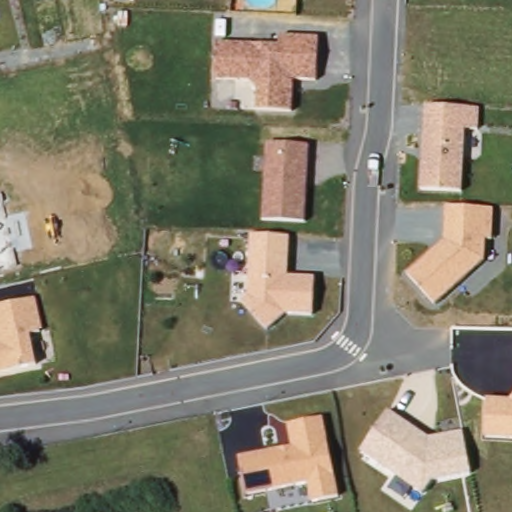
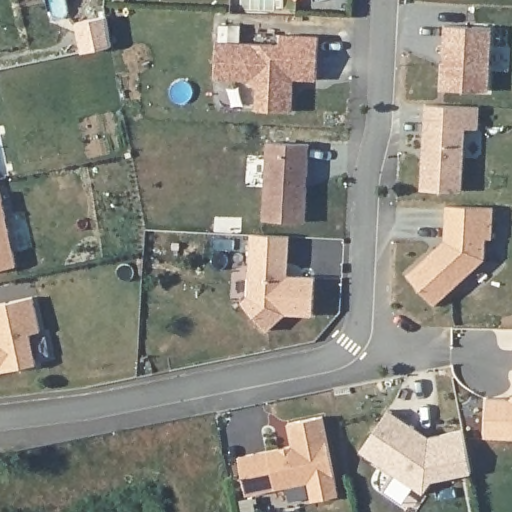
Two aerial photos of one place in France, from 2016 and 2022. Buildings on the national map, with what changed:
new [(445,26),(489,27),(487,92),(441,87),(445,26)]
unchanged [(212,79),(215,42),(277,45),(277,35),(317,37),(315,81),(292,80),(290,112),(253,111),(255,89),(246,81),(212,79)]
unchanged [(477,107),(476,128),(463,128),(461,190),(419,189),(423,105),(477,107)]
unchanged [(264,142),(307,144),(304,222),(260,220),(264,142)]
unchanged [(6,220),(24,214),(31,250),(14,253),(16,267),(0,270),(0,196),(1,196),(6,220)]
unchanged [(444,206),(490,208),(489,240),(484,241),(484,260),(434,305),(405,275),(441,242),(444,206)]
unchanged [(249,235),(288,237),(286,276),(314,277),(312,317),(283,315),(265,331),(238,301),(245,295),(249,235)]
unchanged [(39,330),(30,332),(35,365),(0,372),(0,304),(31,297),(39,330)]
unchanged [(487,437),(486,397),(510,399),(512,398),(512,438),(487,437)]
unchanged [(433,482),(424,495),(412,488),(405,500),(387,489),(397,477),(361,452),(388,412),(429,438),(463,432),(471,473),(433,482)]
unchanged [(292,446),(286,423),(323,415),(338,497),(312,502),(307,482),(247,495),(237,457),(292,446)]

